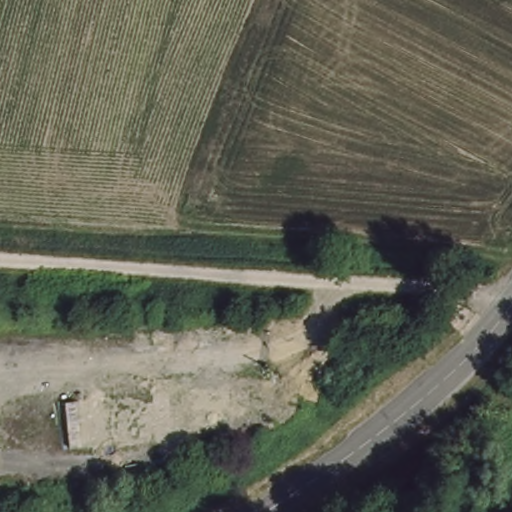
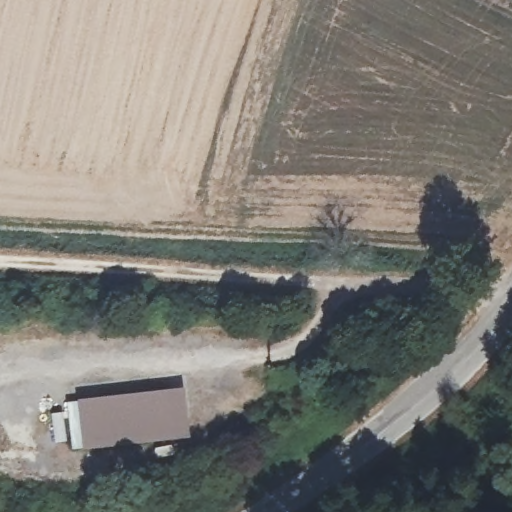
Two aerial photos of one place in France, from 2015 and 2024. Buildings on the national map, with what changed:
new [(97,390),(108,388),(157,382),(162,427),(78,438),(67,440),(62,393),(72,392),(97,390)]
new [(172,382),(177,424),(162,426),(157,383),(172,382)]
demolished [(173,391),(180,432),(77,443),(68,401),(173,391)]

